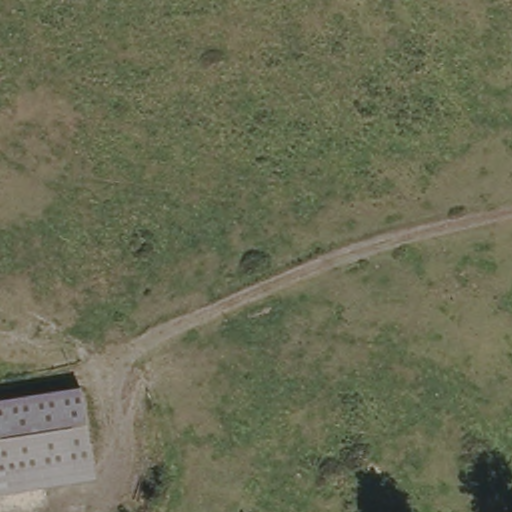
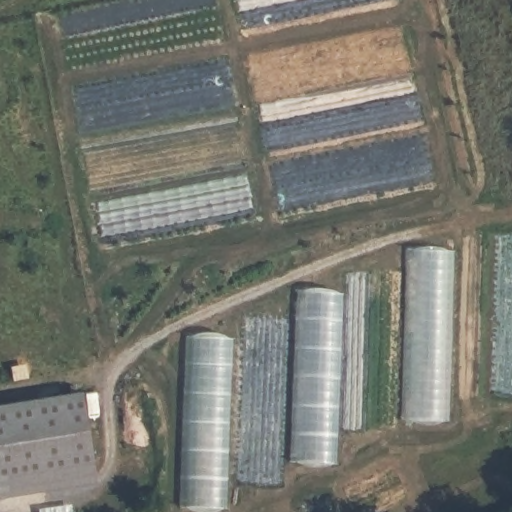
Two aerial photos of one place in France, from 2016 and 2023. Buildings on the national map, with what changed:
new [(343,288),(339,460),(290,456),(295,283),(343,288)]
new [(233,336),(229,508),(180,504),(185,331),(233,336)]
unchanged [(84,391),(97,485),(0,501),(0,404),(84,391)]

